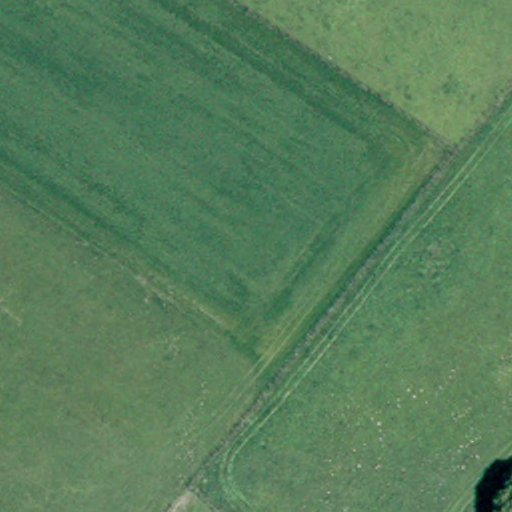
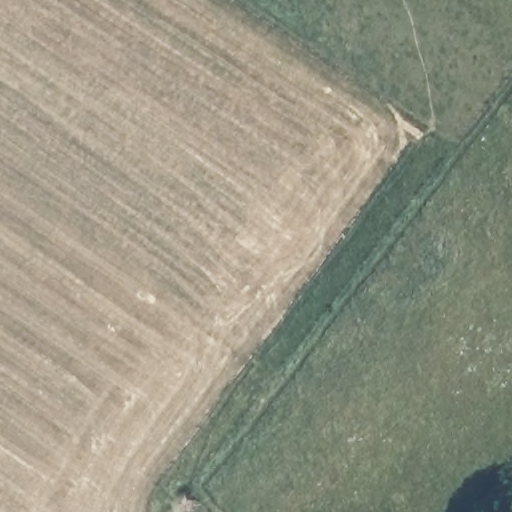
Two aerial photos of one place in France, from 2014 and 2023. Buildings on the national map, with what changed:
[]

